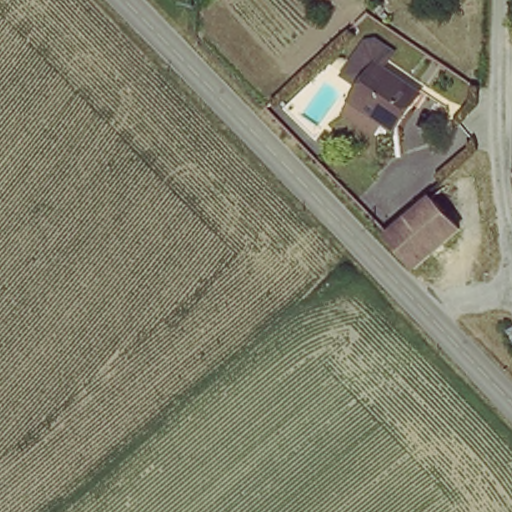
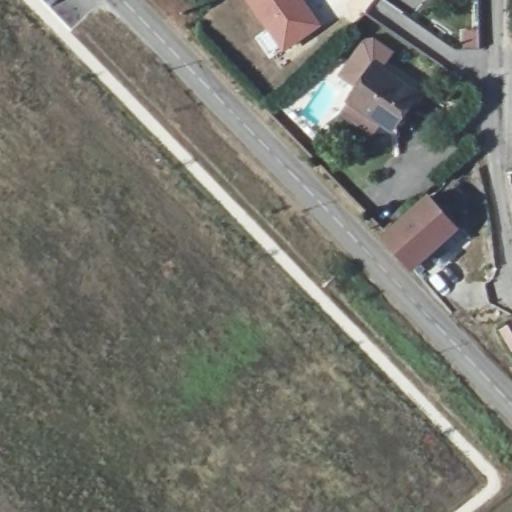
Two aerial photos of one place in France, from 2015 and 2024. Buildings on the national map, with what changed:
new [(245,0),(303,0),(321,26),(284,53),(245,0)]
unchanged [(346,117),(356,102),(362,93),(349,81),(371,47),(381,42),(396,53),(384,71),(419,90),(403,117),(389,110),(384,119),(374,135),(346,117)]
unchanged [(452,174),(482,208),(415,271),(384,237),(452,174)]

